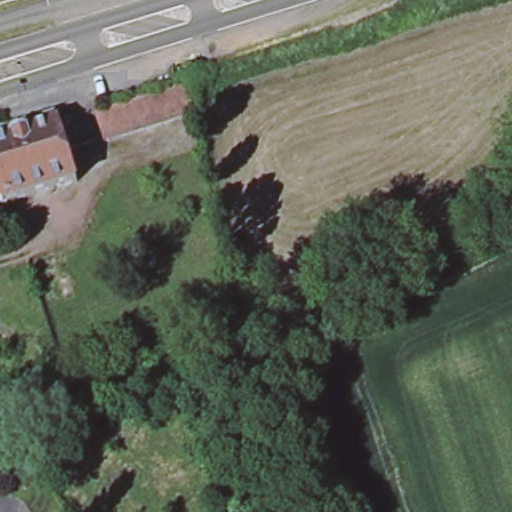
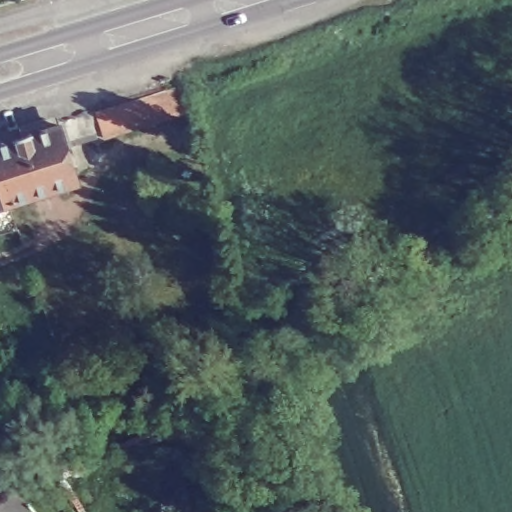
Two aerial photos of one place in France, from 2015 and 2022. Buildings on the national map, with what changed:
unchanged [(113,105),(130,99),(148,94),(167,88),(185,83),(193,110),(175,116),(157,122),(139,127),(122,132),(102,139),(93,111),(113,105)]
unchanged [(0,203),(0,201),(0,140),(57,122),(72,117),(87,113),(95,139),(81,143),(65,148),(75,180),(3,202),(0,203)]

